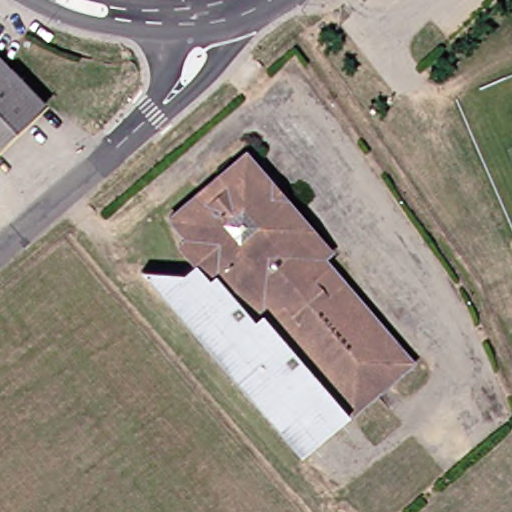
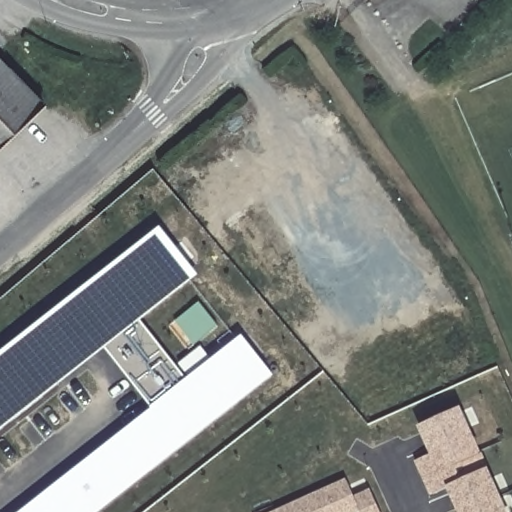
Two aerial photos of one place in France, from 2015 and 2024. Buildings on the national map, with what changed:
unchanged [(37,111),(0,145),(0,74),(37,111)]
demolished [(182,281),(199,268),(171,239),(181,231),(161,208),(189,185),(196,194),(214,180),(206,170),(237,145),(264,176),(255,184),(269,200),(277,192),(324,246),(315,254),(402,355),(287,451),(139,276),(182,281)]
new [(107,346),(0,431),(0,354),(160,228),(198,275),(139,322),(180,375),(176,378),(180,384),(242,335),(273,375),(100,512),(18,512),(153,405),(107,346)]
new [(446,486),(430,494),(419,469),(425,466),(421,460),(431,455),(418,426),(460,407),(485,461),(481,463),(503,512),(458,512),(446,486)]
new [(370,492),(378,512),(276,512),(346,480),(355,500),(370,492)]

